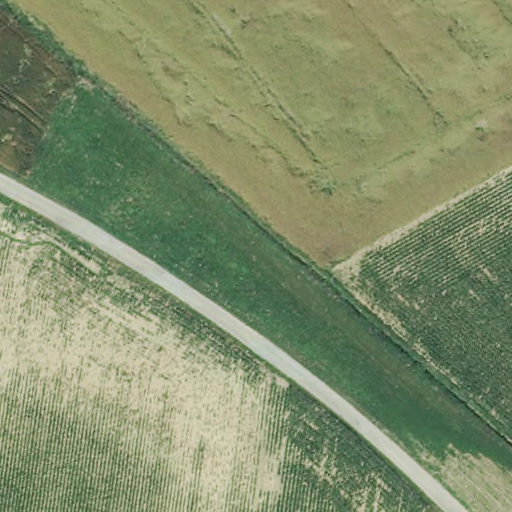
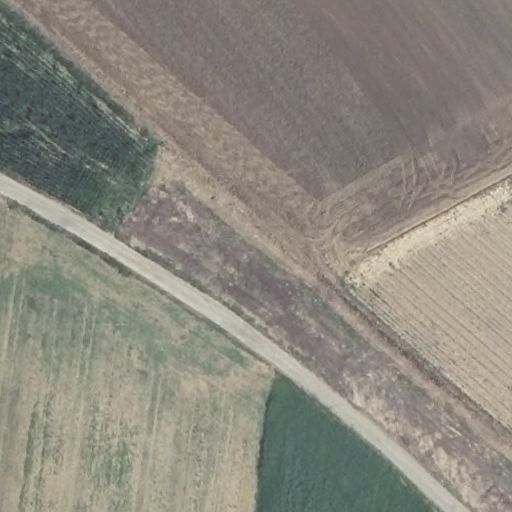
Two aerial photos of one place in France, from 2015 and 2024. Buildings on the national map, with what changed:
[]

